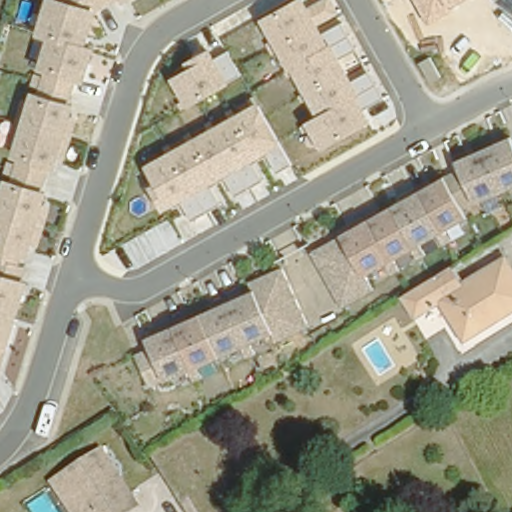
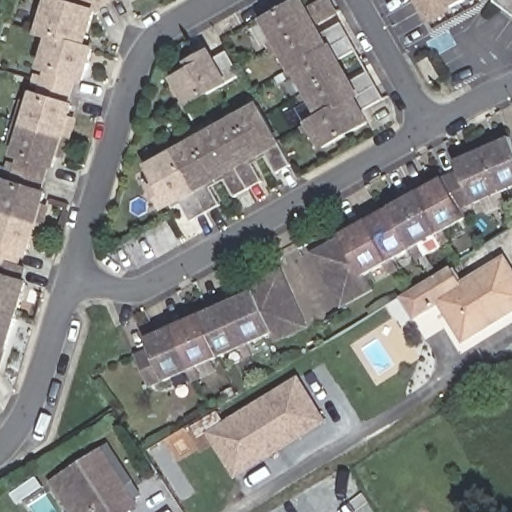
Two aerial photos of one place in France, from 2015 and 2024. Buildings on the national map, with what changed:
unchanged [(89,45),(97,47),(87,84),(78,82),(72,102),(76,102),(72,117),(79,119),(69,158),(61,156),(57,170),(51,168),(44,190),(49,191),(45,205),(52,207),(42,246),(34,244),(31,255),(23,252),(20,265),(27,267),(26,279),(32,281),(10,353),(3,371),(0,373),(0,190),(1,191),(5,177),(9,164),(18,166),(19,160),(12,158),(15,146),(8,144),(22,101),(27,104),(32,91),(36,76),(45,77),(46,72),(40,70),(49,40),(38,37),(48,0),(113,0),(97,10),(89,45)]
unchanged [(124,0),(130,0),(126,2),(124,0)]
unchanged [(370,124),(325,147),(312,122),(323,116),(267,16),(297,0),(303,0),(308,11),(328,0),(330,0),(385,97),(362,110),(370,124)]
unchanged [(452,12),(427,26),(413,0),(466,0),(451,9),(452,12)]
unchanged [(497,0),(512,0),(512,14),(496,2),(497,0)]
unchanged [(215,60),(230,52),(243,80),(227,85),(189,104),(176,77),(194,67),(190,60),(210,50),(215,60)]
unchanged [(277,173),(267,157),(254,165),(265,181),(236,197),(226,180),(212,188),(222,205),(192,222),(182,204),(172,210),(169,203),(164,206),(154,188),(160,184),(150,166),(258,106),(292,165),(277,173)]
unchanged [(455,160),(508,136),(512,144),(512,189),(472,205),(464,208),(471,221),(363,280),(341,237),(337,232),(445,174),(447,177),(460,171),(455,160)]
unchanged [(363,280),(372,291),(342,308),(311,252),(341,237),(363,280)]
unchanged [(498,252),(512,275),(512,301),(459,333),(435,296),(412,310),(398,287),(406,282),(411,279),(440,262),(442,260),(455,278),(498,252)]
unchanged [(283,268),(312,330),(276,345),(272,338),(250,284),(283,268)]
unchanged [(136,356),(150,350),(142,333),(250,284),(272,338),(165,383),(151,390),(136,356)]
new [(251,462),(227,423),(298,379),(323,418),(251,462)]
new [(251,462),(323,418),(326,422),(237,477),(210,434),(227,423),(251,462)]
unchanged [(59,476),(97,452),(131,505),(119,512),(81,512),(59,476)]

